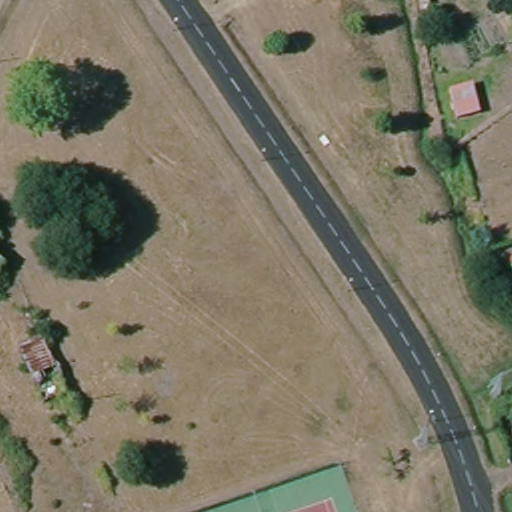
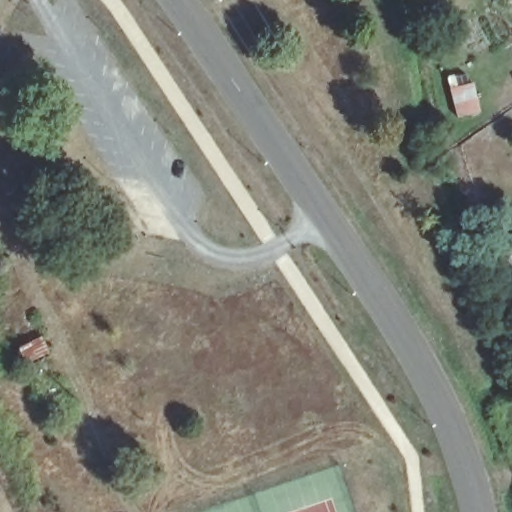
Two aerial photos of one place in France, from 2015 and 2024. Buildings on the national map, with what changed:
unchanged [(64,394),(45,403),(22,349),(41,340),(64,394)]

